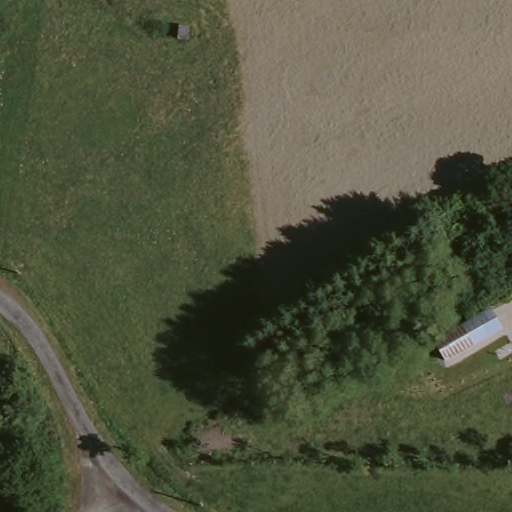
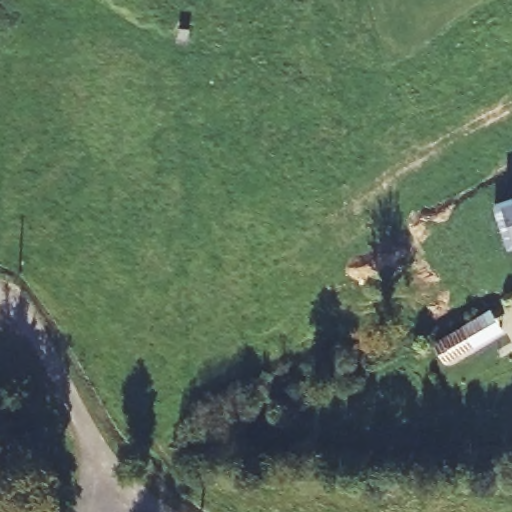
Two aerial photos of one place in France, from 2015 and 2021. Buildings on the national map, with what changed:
new [(509,245),(497,204),(506,201),(512,199),(512,244),(509,245)]
unchanged [(502,303),(512,321),(512,322),(458,353),(453,347),(434,358),(427,346),(502,303)]

